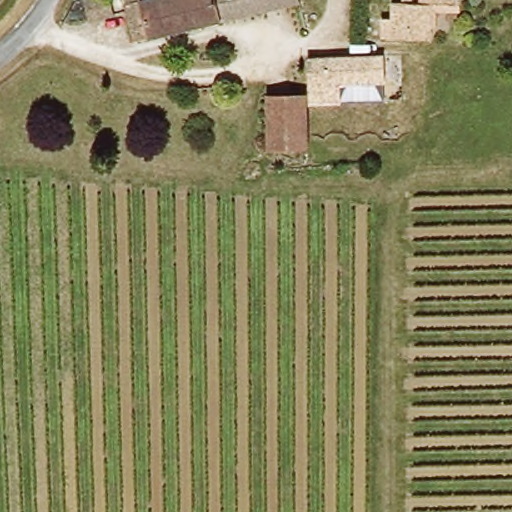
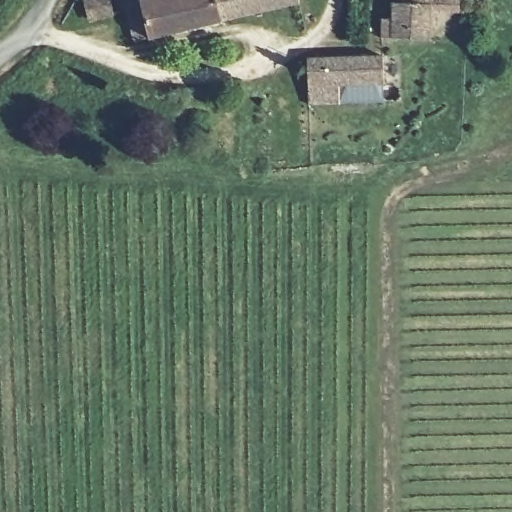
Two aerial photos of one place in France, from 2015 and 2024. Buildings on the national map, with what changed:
unchanged [(112,1),(105,5),(107,16),(83,21),(79,0),(112,0),(112,1)]
unchanged [(131,44),(120,3),(132,0),(293,0),(294,3),(131,44)]
unchanged [(385,23),(395,22),(395,7),(401,7),(401,0),(428,0),(428,39),(384,37),(385,23)]
unchanged [(309,59),(381,58),(393,57),(396,82),(384,82),(307,83),(309,59)]
unchanged [(302,97),(300,150),(264,149),(265,97),(302,97)]

